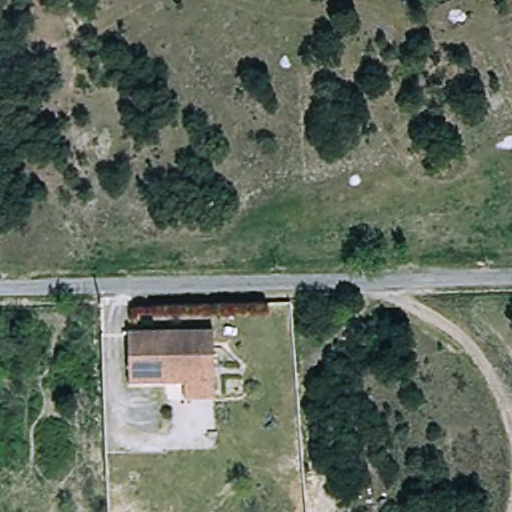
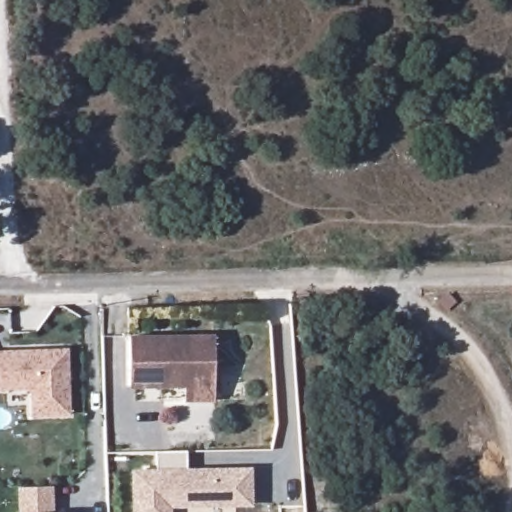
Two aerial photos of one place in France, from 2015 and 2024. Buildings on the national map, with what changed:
unchanged [(188,402),(187,387),(132,387),(132,337),(217,336),(217,387),(218,402),(188,402)]
new [(77,352),(78,418),(39,418),(38,391),(16,392),(0,392),(0,353),(77,352)]
new [(154,451),(185,450),(186,467),(251,466),(252,506),(170,507),(170,512),(130,512),(130,469),(155,468),(154,451)]

